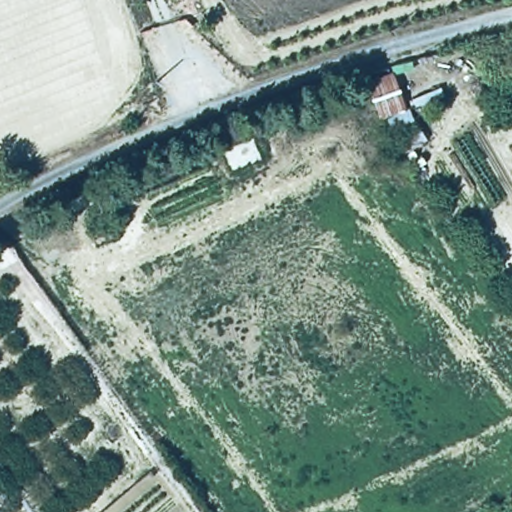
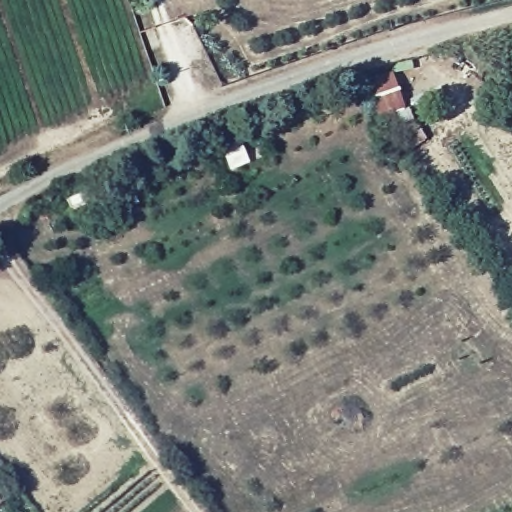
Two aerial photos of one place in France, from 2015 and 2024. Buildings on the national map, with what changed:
unchanged [(395,71),(403,111),(375,118),(365,78),(395,71)]

